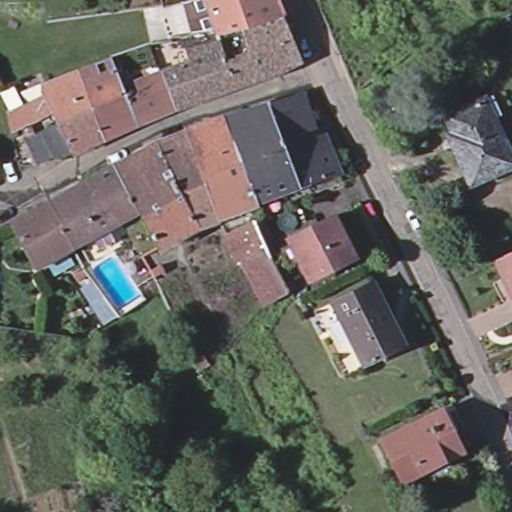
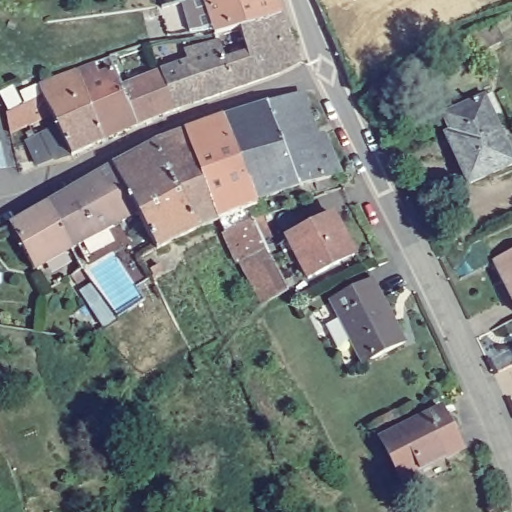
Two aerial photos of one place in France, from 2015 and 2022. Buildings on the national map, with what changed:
unchanged [(254,15),(215,26),(212,16),(207,0),(275,0),(278,7),(254,15)]
unchanged [(278,7),(297,53),(270,68),(254,15),(278,7)]
unchanged [(270,68),(231,81),(215,30),(215,26),(254,15),(270,68)]
unchanged [(182,40),(215,30),(231,81),(201,92),(187,51),(182,40)]
unchanged [(38,122),(55,115),(52,106),(27,118),(23,106),(5,111),(3,99),(10,96),(19,94),(41,86),(40,84),(42,75),(73,62),(107,48),(120,80),(137,118),(108,131),(102,134),(72,147),(70,144),(64,146),(65,149),(57,150),(55,147),(50,147),(33,153),(23,128),(38,122)]
unchanged [(201,92),(176,101),(160,63),(187,51),(201,92)]
unchanged [(176,101),(137,118),(120,80),(160,63),(176,101)]
unchanged [(225,109),(302,86),(315,126),(307,129),(312,145),(325,141),(332,166),(257,193),(225,109)]
unchanged [(470,200),(449,157),(455,154),(442,126),(481,108),(490,104),(501,126),(493,131),(512,171),(512,179),(470,200)]
unchanged [(220,212),(185,123),(225,109),(257,193),(259,198),(257,199),(220,212)]
unchanged [(115,157),(163,132),(185,123),(220,212),(195,220),(155,238),(138,203),(115,157)]
unchanged [(87,172),(115,157),(138,203),(111,217),(87,172)]
unchanged [(70,238),(45,194),(49,192),(87,172),(111,217),(70,238)]
unchanged [(67,240),(58,245),(52,248),(38,222),(27,204),(45,194),(70,238),(67,240)]
unchanged [(38,222),(52,248),(32,258),(8,217),(27,204),(38,222)]
unchanged [(352,256),(307,280),(285,237),(330,214),(352,256)]
unchanged [(263,300),(241,256),(237,258),(225,230),(249,217),(263,244),(287,288),(263,300)]
unchanged [(512,257),(512,295),(497,265),(512,257)]
unchanged [(399,342),(357,361),(327,297),(367,278),(399,342)]
unchanged [(440,408),(460,452),(398,478),(380,434),(440,408)]

